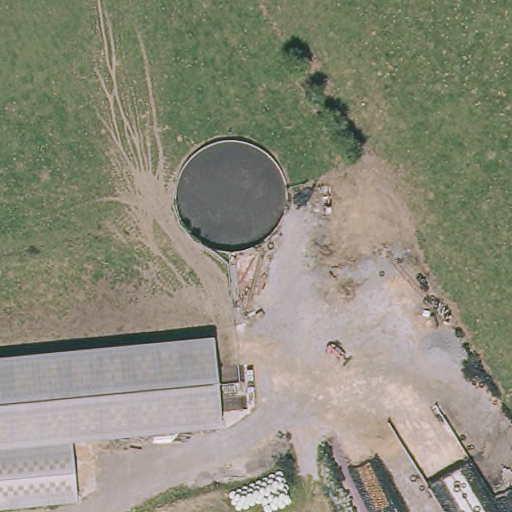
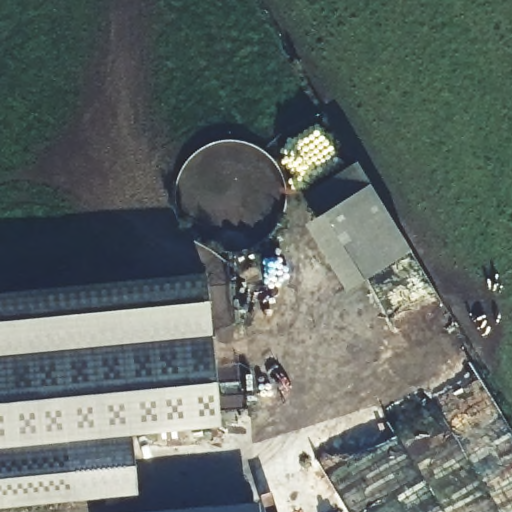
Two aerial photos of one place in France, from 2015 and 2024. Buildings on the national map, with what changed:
new [(320,213),(307,193),(354,162),(367,184),(320,213)]
new [(367,184),(407,250),(360,279),(320,213),(367,184)]
new [(320,213),(360,279),(345,289),(304,223),(320,213)]
new [(211,336),(0,357),(0,292),(205,273),(211,336)]
unchanged [(218,427),(67,440),(75,501),(0,508),(0,357),(211,336),(218,427)]
new [(67,440),(132,435),(137,495),(75,501),(67,440)]
new [(259,512),(148,512),(258,502),(259,512)]

